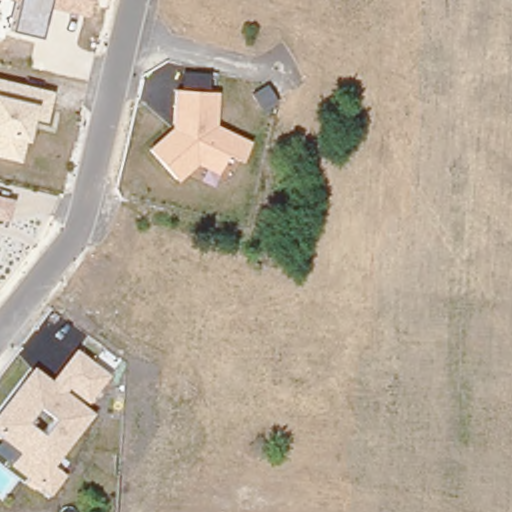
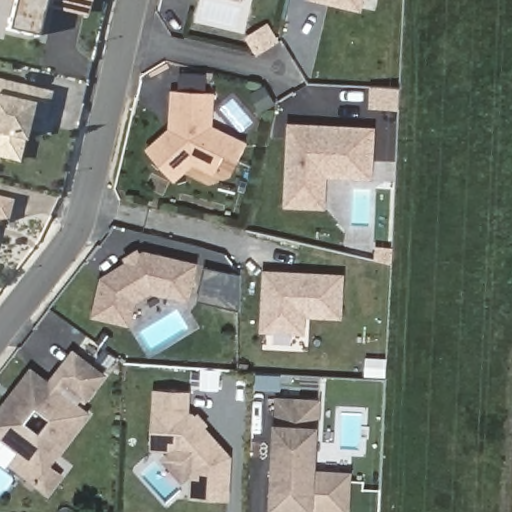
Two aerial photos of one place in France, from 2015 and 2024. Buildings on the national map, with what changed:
unchanged [(89,14),(46,4),(38,38),(5,28),(11,0),(92,0),(89,14)]
new [(364,10),(318,0),(366,0),(364,10)]
unchanged [(48,124),(37,121),(25,163),(0,155),(0,78),(55,92),(48,124)]
unchanged [(242,162),(227,155),(217,174),(196,164),(178,181),(148,148),(172,127),(174,89),(217,91),(216,124),(250,141),(242,162)]
new [(376,178),(329,177),(328,208),(286,207),(290,122),(378,126),(376,178)]
unchanged [(7,218),(0,217),(0,197),(12,199),(7,218)]
new [(196,303),(158,294),(142,305),(137,326),(98,319),(108,276),(132,263),(130,258),(145,249),(147,254),(151,252),(205,263),(196,303)]
new [(208,266),(243,275),(243,311),(200,301),(208,266)]
new [(270,273),(287,274),(287,278),(300,279),(300,275),(348,277),(346,317),(310,315),(309,333),(267,331),(270,273)]
unchanged [(85,405),(95,412),(53,465),(67,475),(50,496),(9,465),(20,452),(0,438),(0,410),(34,366),(51,380),(76,348),(109,374),(85,405)]
new [(194,411),(196,411),(199,414),(201,412),(211,424),(209,426),(234,455),(233,499),(191,497),(192,477),(185,483),(162,457),(170,451),(152,450),(155,389),(194,390),(194,411)]
new [(320,470),(354,470),(352,512),(306,512),(273,510),(278,422),(279,396),(324,397),(322,424),(320,470)]

